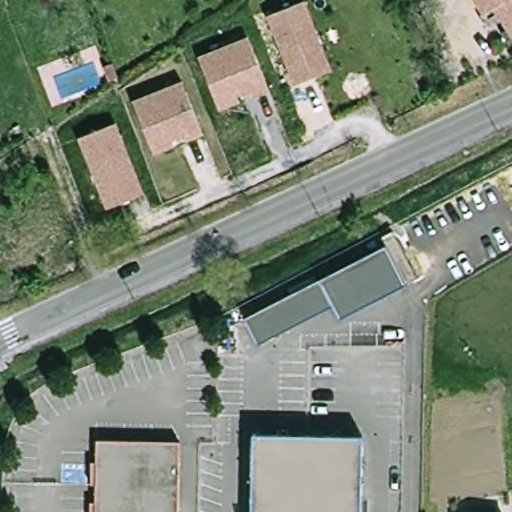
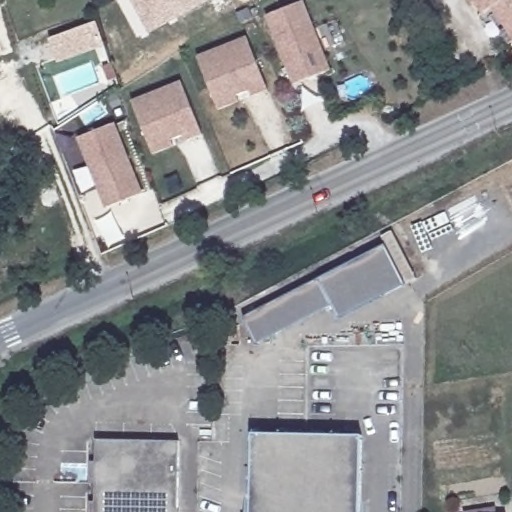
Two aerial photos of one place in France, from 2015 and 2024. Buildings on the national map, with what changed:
new [(150,34),(132,0),(210,0),(150,34)]
unchanged [(512,30),(496,7),(486,15),(476,0),(512,0),(512,30)]
unchanged [(302,1),(313,28),(330,70),(292,84),(279,49),(265,15),(302,1)]
new [(58,62),(50,38),(95,22),(105,46),(58,62)]
unchanged [(246,36),(256,62),(266,89),(251,96),(248,89),(235,95),(237,101),(217,109),(210,91),(197,55),(246,36)]
unchanged [(103,67),(111,64),(116,77),(109,80),(103,67)]
unchanged [(180,80),(190,104),(200,133),(185,140),(183,134),(170,139),(171,145),(152,152),(145,134),(131,100),(180,80)]
unchanged [(110,122),(121,150),(138,192),(104,206),(90,170),(77,136),(110,122)]
unchanged [(332,306),(317,279),(385,244),(406,286),(338,320),(332,306)]
unchanged [(256,346),(242,317),(317,279),(332,306),(256,346)]
unchanged [(307,438),(305,512),(254,512),(255,437),(307,438)]
unchanged [(367,440),(365,512),(305,512),(307,438),(367,440)]
unchanged [(98,503),(98,497),(98,486),(93,486),(94,464),(99,464),(100,442),(141,443),(183,444),(181,512),(93,512),(93,503),(98,503)]
unchanged [(497,512),(481,512),(497,510),(497,512)]

